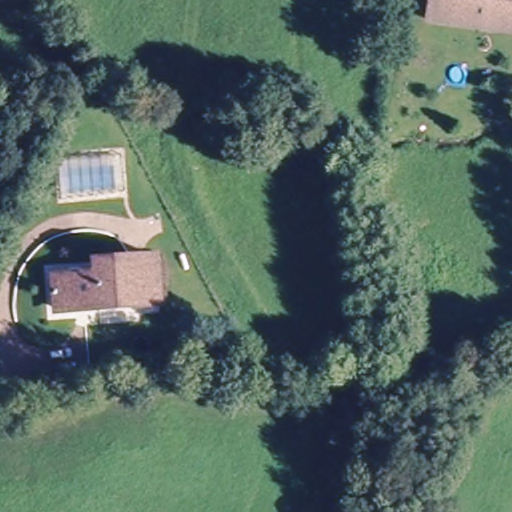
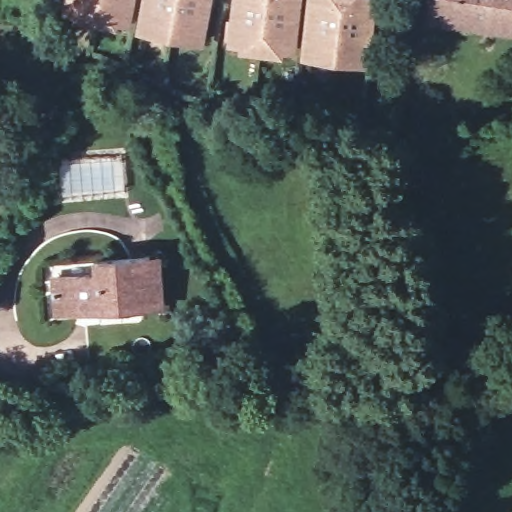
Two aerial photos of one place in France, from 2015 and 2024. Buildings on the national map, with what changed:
new [(131,26),(120,24),(119,28),(72,20),(74,15),(62,13),(64,0),(136,0),(131,26)]
new [(204,45),(134,31),(140,0),(212,0),(204,45)]
new [(231,0),(303,0),(297,52),(283,51),(282,56),(239,50),(239,45),(227,44),(231,0)]
new [(307,0),(377,0),(371,67),(300,58),(307,0)]
unchanged [(425,25),(428,0),(512,0),(512,21),(453,14),(452,29),(425,25)]
unchanged [(453,14),(512,21),(512,37),(452,29),(453,14)]
unchanged [(56,309),(59,273),(98,274),(99,261),(156,263),(155,302),(155,314),(134,313),(56,309)]

